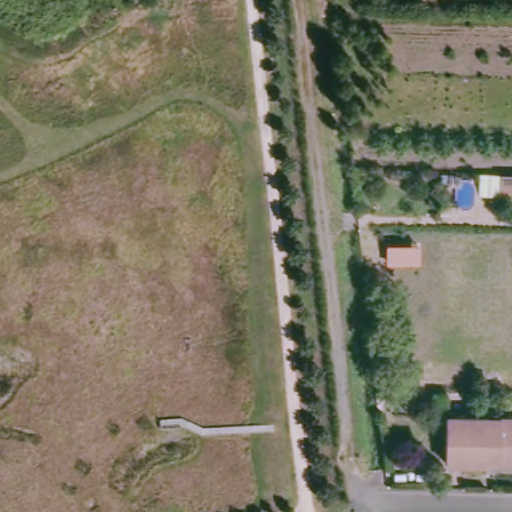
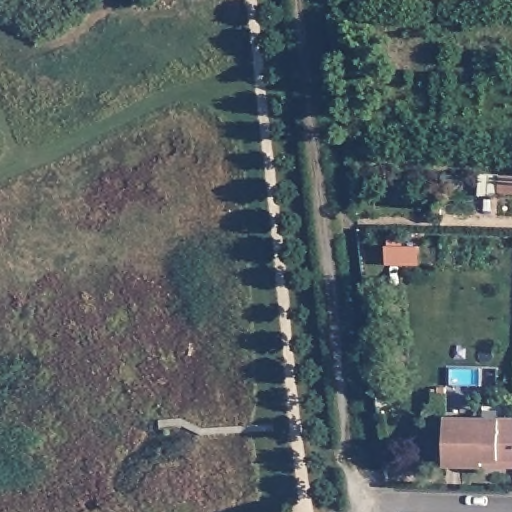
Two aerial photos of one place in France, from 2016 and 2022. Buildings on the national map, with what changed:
unchanged [(512,175),(512,190),(500,190),(501,175),(512,175)]
unchanged [(512,422),(512,461),(489,461),(488,467),(444,466),(446,421),(512,422)]

